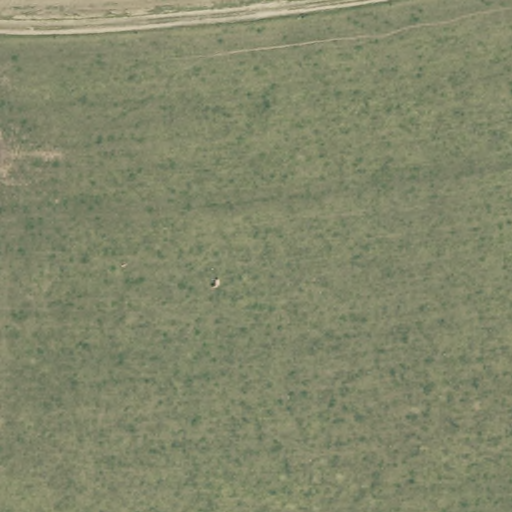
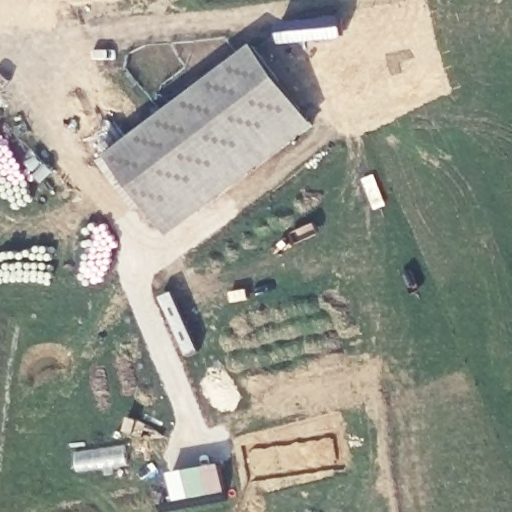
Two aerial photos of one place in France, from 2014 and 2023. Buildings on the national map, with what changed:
new [(255,44),(315,126),(170,235),(110,155),(255,44)]

